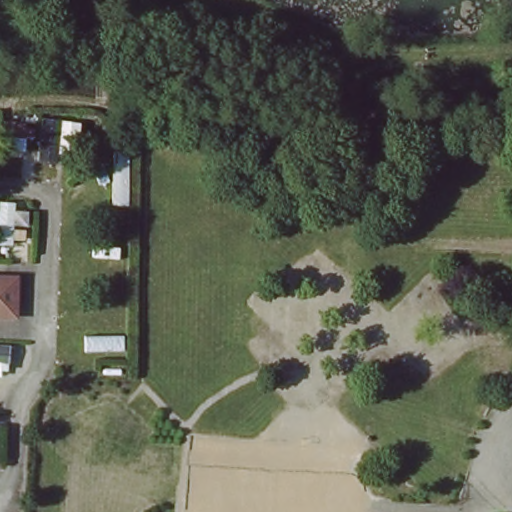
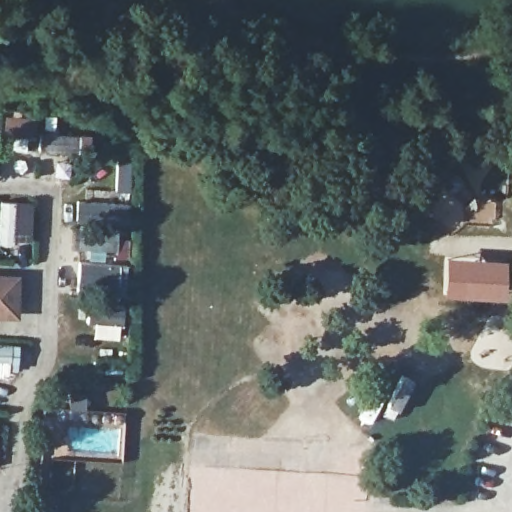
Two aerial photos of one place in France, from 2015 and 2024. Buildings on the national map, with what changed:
new [(444,255),(506,258),(505,300),(441,295),(444,255)]
unchanged [(21,277),(20,318),(0,318),(0,277),(21,277)]

